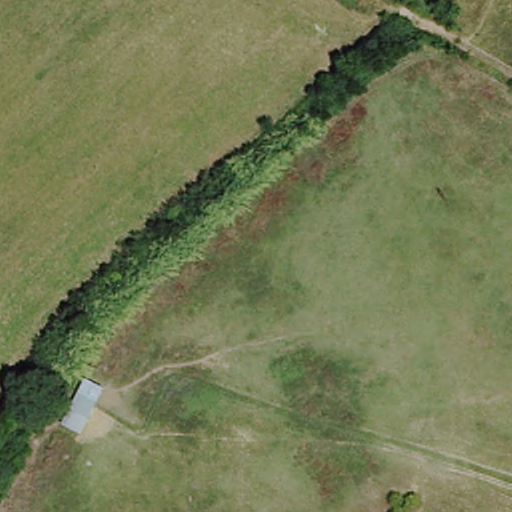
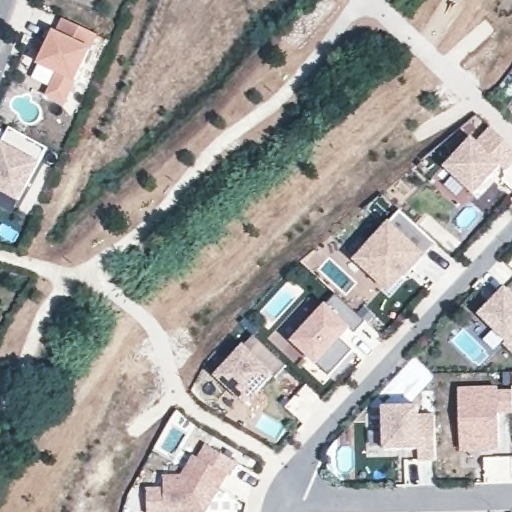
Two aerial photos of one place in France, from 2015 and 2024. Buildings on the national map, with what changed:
new [(50,31),(53,32),(60,17),(93,34),(61,102),(44,94),(55,72),(35,62),(50,31)]
new [(0,137),(6,126),(44,147),(23,185),(15,198),(0,189),(0,137)]
new [(443,168),(473,137),(477,141),(491,127),(512,147),(512,166),(505,173),(503,167),(476,197),(443,168)]
new [(353,262),(390,222),(401,210),(438,245),(406,282),(402,279),(390,295),(353,262)]
new [(512,294),(512,349),(505,342),(508,340),(480,314),(505,287),(512,294)]
new [(326,304),(337,295),(366,322),(354,333),(350,330),(340,341),(353,351),(329,376),(317,365),(291,342),(326,304)]
new [(276,377),(274,375),(247,403),(218,376),(255,336),(288,366),(276,377)]
new [(498,410),(499,448),(460,449),(458,390),(498,389),(498,393),(512,393),(512,410),(498,410)]
new [(419,407),(420,416),(436,415),(437,462),(419,462),(419,451),(384,452),(383,407),(419,407)]
new [(203,498),(203,512),(148,512),(148,490),(165,490),(165,478),(185,478),(197,457),(201,460),(208,447),(236,462),(228,476),(226,475),(212,498),(203,498)]

